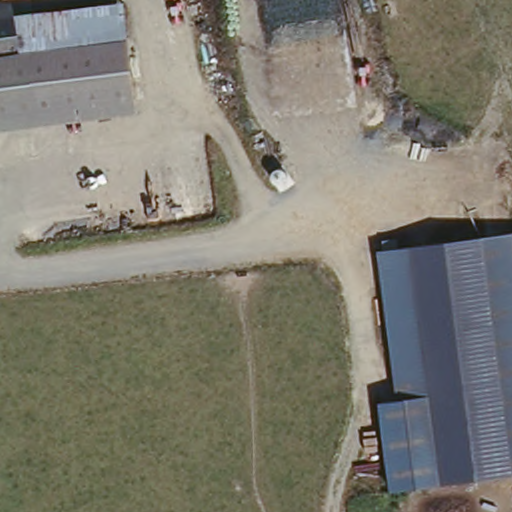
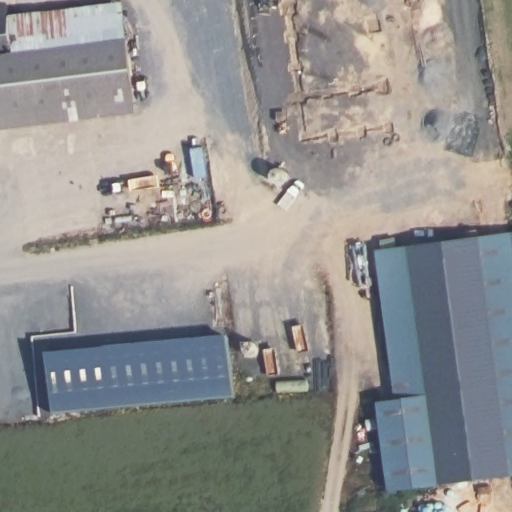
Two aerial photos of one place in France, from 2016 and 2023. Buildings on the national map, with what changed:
unchanged [(10,13),(12,27),(0,29),(0,14),(10,13)]
unchanged [(29,25),(124,13),(137,110),(0,128),(0,68),(19,66),(17,57),(12,27),(29,25)]
unchanged [(12,27),(17,57),(19,66),(0,68),(0,29),(12,27)]
unchanged [(512,259),(512,473),(395,491),(382,401),(400,398),(377,250),(507,229),(512,259)]
unchanged [(512,259),(507,229),(512,229),(512,259)]
new [(235,337),(242,399),(55,418),(51,353),(235,337)]

